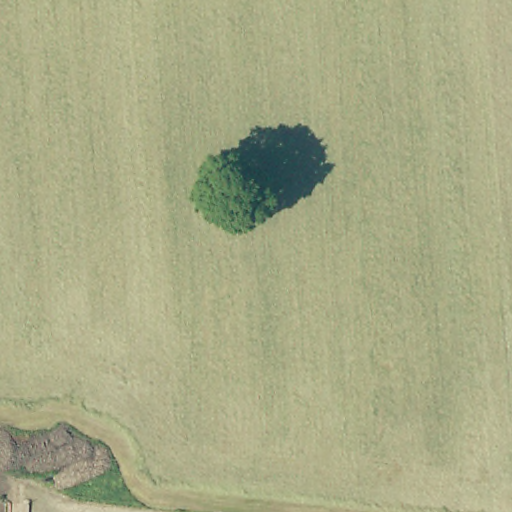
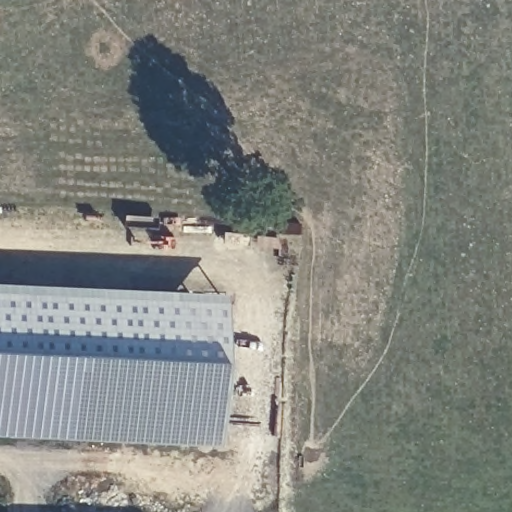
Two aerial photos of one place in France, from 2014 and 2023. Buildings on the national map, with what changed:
new [(0,292),(216,302),(214,444),(0,435),(0,292)]

